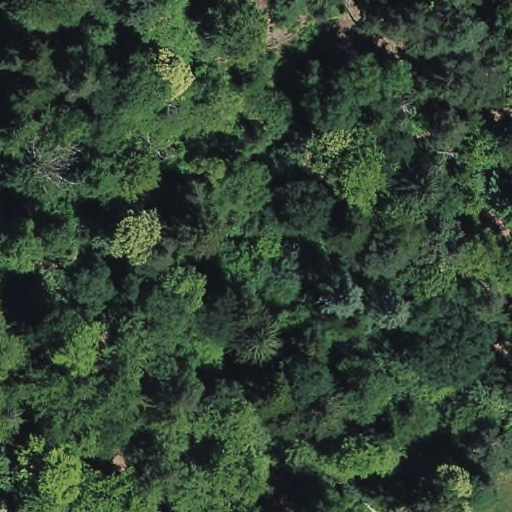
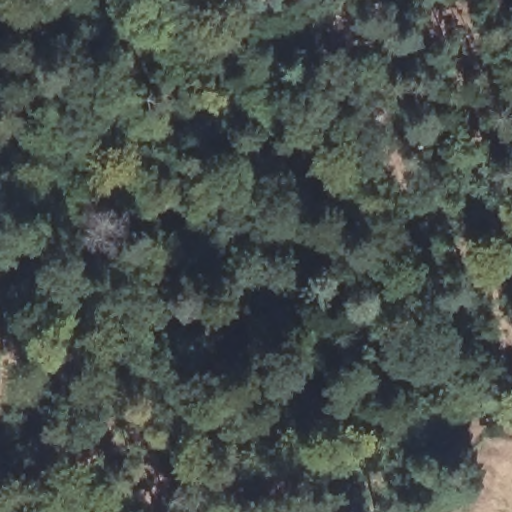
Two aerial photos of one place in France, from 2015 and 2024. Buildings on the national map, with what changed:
[]

